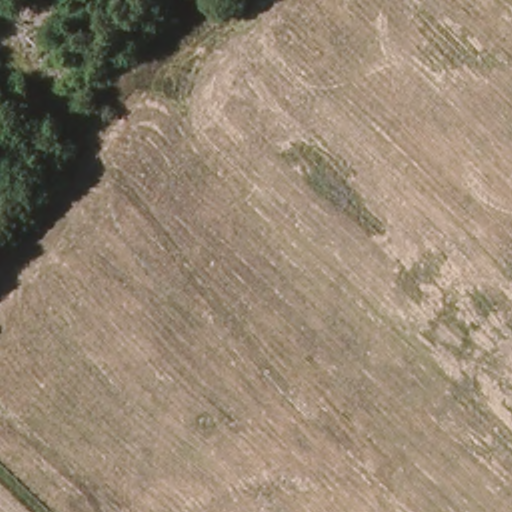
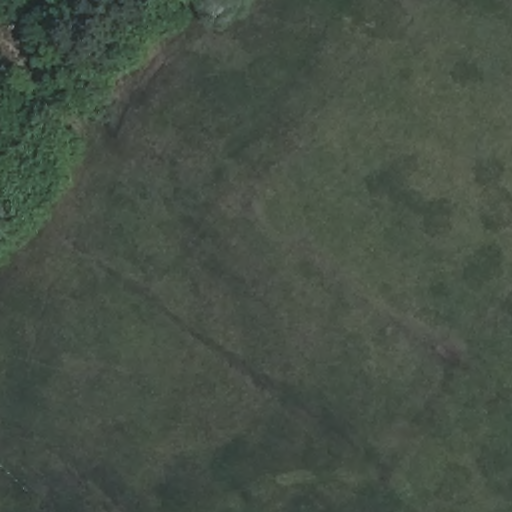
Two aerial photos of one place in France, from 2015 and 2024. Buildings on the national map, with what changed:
[]

